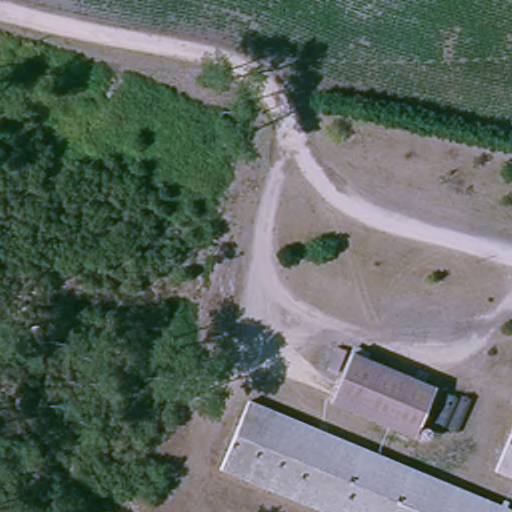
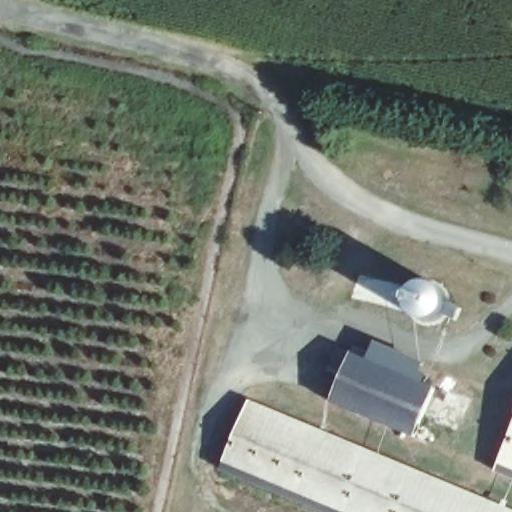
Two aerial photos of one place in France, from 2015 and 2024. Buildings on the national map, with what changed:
unchanged [(441,391),(420,439),(330,400),(350,350),(441,391)]
unchanged [(233,389),(302,419),(293,436),(475,512),(303,512),(202,468),(233,389)]
unchanged [(475,512),(293,436),(302,419),(512,509),(512,512),(475,512)]
unchanged [(494,467),(512,427),(512,475),(494,467)]

